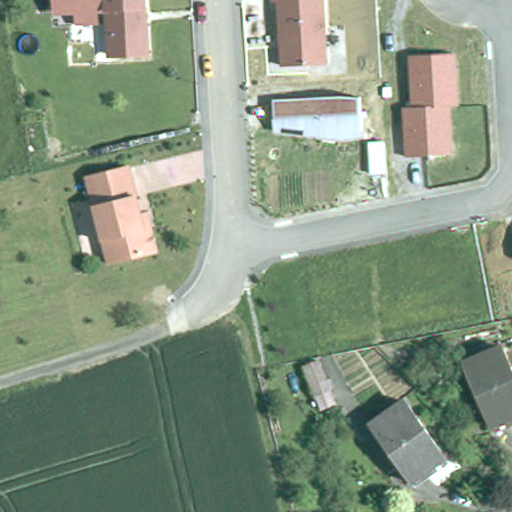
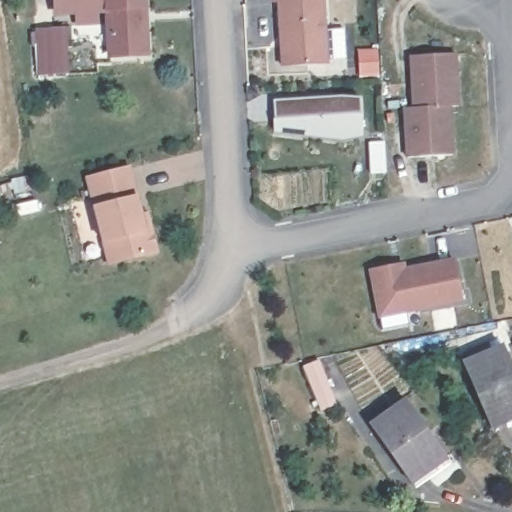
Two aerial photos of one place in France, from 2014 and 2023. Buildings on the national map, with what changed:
unchanged [(109,59),(108,25),(75,27),(74,12),(52,14),(52,0),(150,0),(154,57),(109,59)]
unchanged [(280,67),(275,0),(327,0),(332,62),(280,67)]
new [(67,25),(68,73),(37,74),(34,27),(67,25)]
unchanged [(458,54),(462,107),(452,107),(454,154),(405,156),(403,107),(413,106),(410,56),(458,54)]
unchanged [(362,137),(341,140),(326,139),(275,133),(275,100),(327,97),(359,99),(362,137)]
unchanged [(154,253),(106,264),(84,178),(127,168),(138,215),(145,213),(148,229),(154,253)]
new [(406,261),(407,267),(455,257),(463,301),(378,318),(368,269),(406,261)]
unchanged [(492,426),(465,363),(504,346),(512,367),(512,418),(492,426)]
unchanged [(320,412),(303,367),(329,357),(342,404),(320,412)]
unchanged [(446,457),(412,482),(372,425),(407,401),(446,457)]

